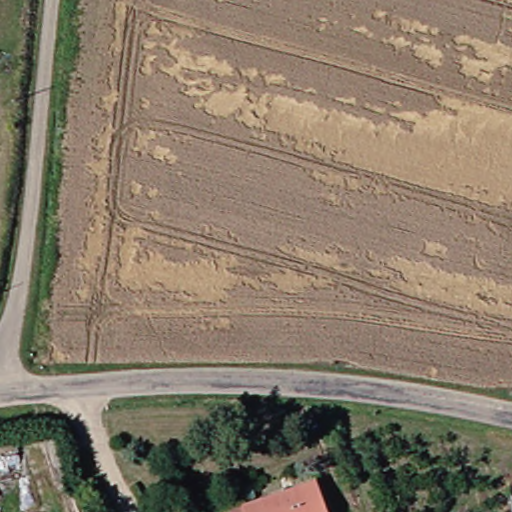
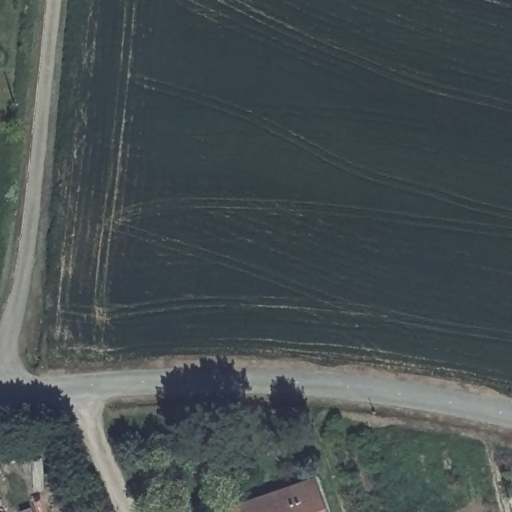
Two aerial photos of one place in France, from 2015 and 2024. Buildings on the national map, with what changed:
unchanged [(246,504),(317,481),(328,512),(249,512),(246,504)]

